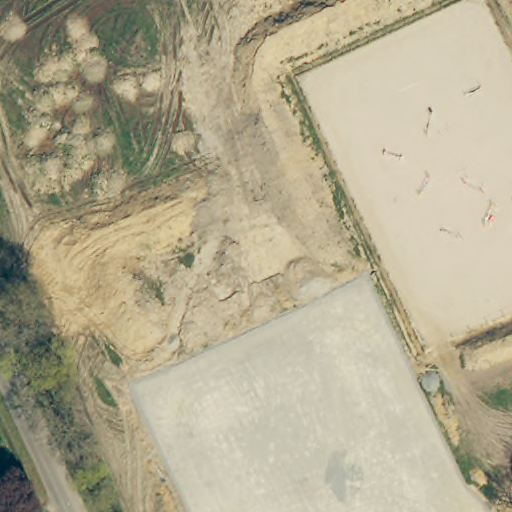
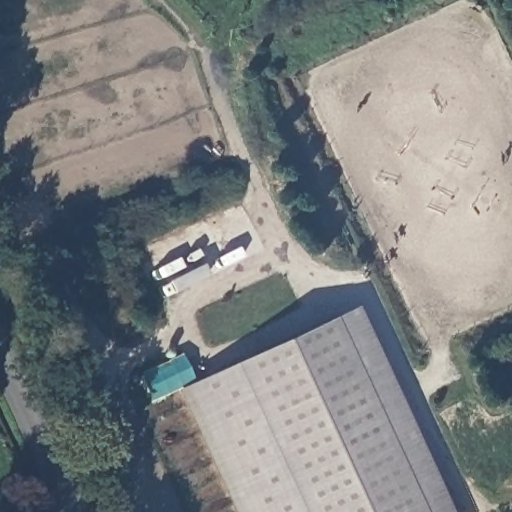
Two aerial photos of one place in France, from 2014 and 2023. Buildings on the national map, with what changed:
new [(232,365),(331,319),(355,308),(452,512),(234,512),(178,390),(232,365)]

